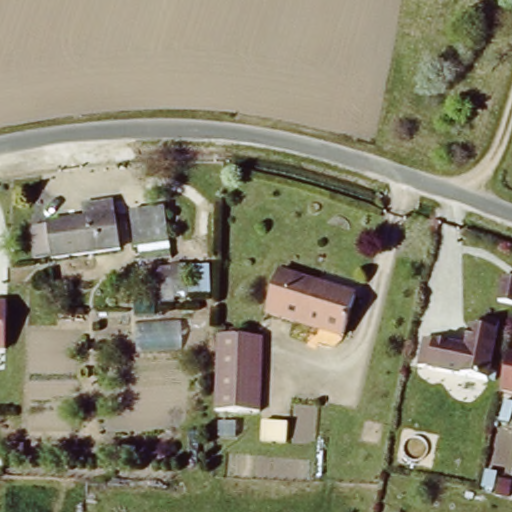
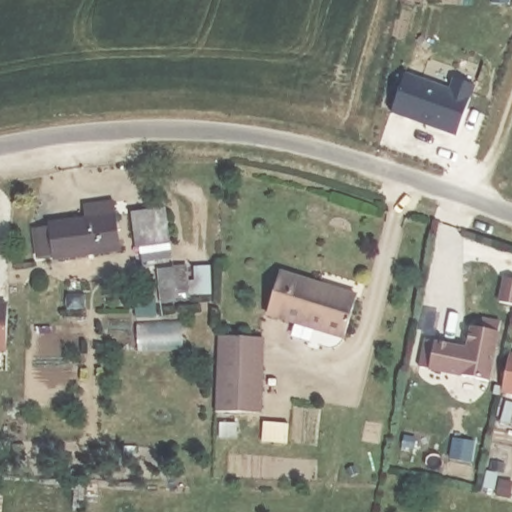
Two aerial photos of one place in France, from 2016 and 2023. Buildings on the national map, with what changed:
new [(457,136),(392,113),(405,73),(449,88),(452,77),(477,86),(457,136)]
unchanged [(52,258),(47,220),(83,216),(82,203),(114,200),(120,251),(52,258)]
unchanged [(139,249),(134,211),(168,207),(173,244),(139,249)]
unchanged [(275,272),(354,292),(344,332),(265,313),(275,272)]
unchanged [(0,353),(0,305),(5,305),(2,354),(0,353)]
unchanged [(471,341),(472,326),(486,329),(487,317),(500,317),(499,328),(491,375),(432,368),(435,339),(471,341)]
unchanged [(260,408),(215,405),(219,333),(265,336),(260,408)]

